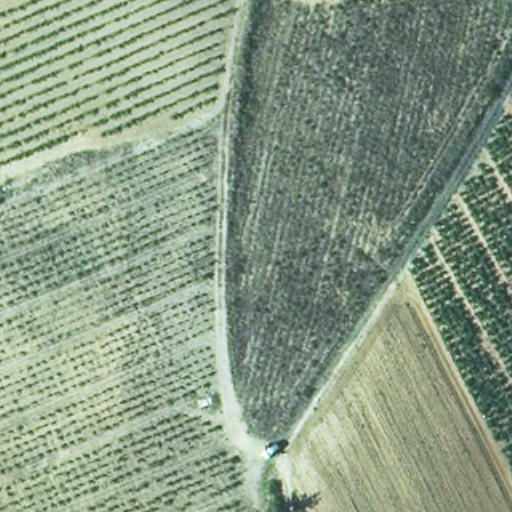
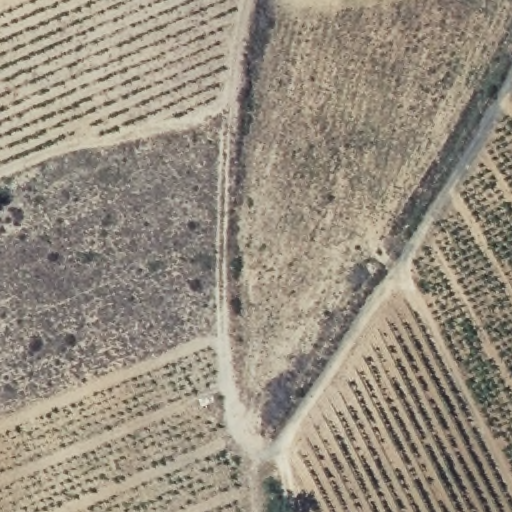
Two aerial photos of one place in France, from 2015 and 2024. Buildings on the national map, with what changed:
[]

